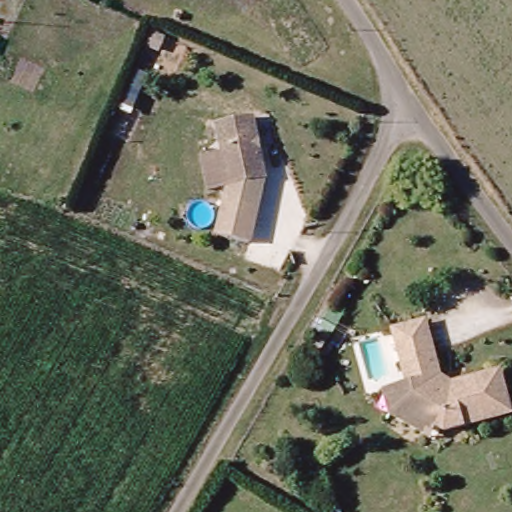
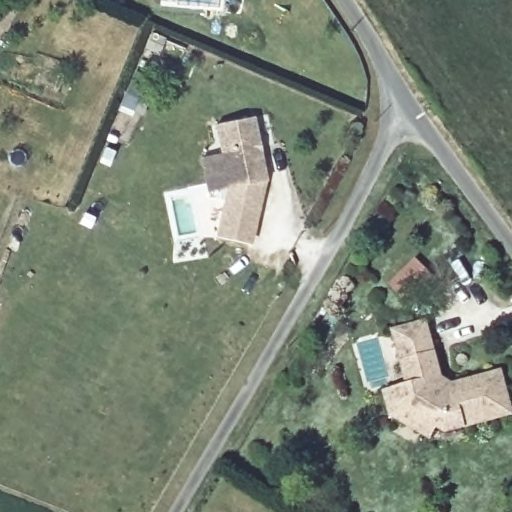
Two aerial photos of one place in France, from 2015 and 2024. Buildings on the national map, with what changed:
unchanged [(266,182),(229,188),(222,154),(218,125),(255,119),(266,182)]
unchanged [(252,245),(215,236),(225,191),(207,193),(201,156),(222,154),(229,188),(266,182),(252,245)]
unchanged [(396,411),(390,388),(403,385),(413,383),(407,359),(401,329),(432,323),(445,382),(455,389),(458,385),(506,375),(512,401),(512,416),(449,429),(442,425),(435,436),(396,411)]

